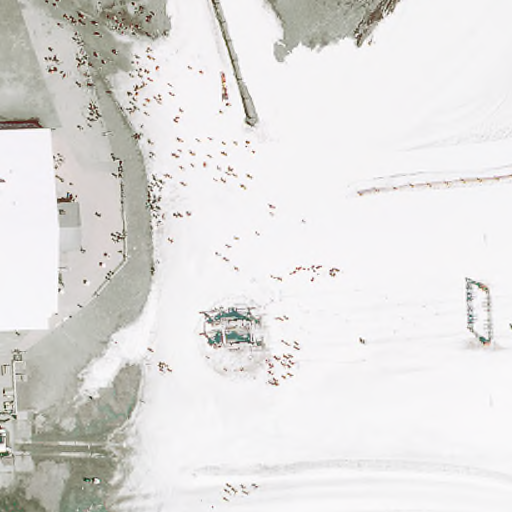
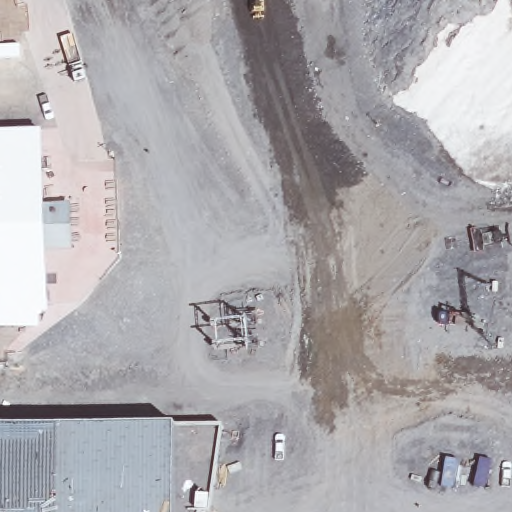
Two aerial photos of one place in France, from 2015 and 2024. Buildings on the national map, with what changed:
unchanged [(49,201),(72,201),(75,249),(47,251),(47,326),(8,328),(9,410),(0,410),(0,129),(48,128),(49,201)]
new [(212,512),(0,512),(0,424),(222,426),(212,512)]

